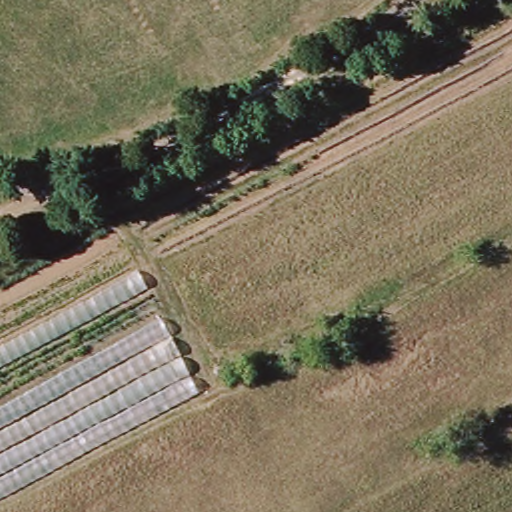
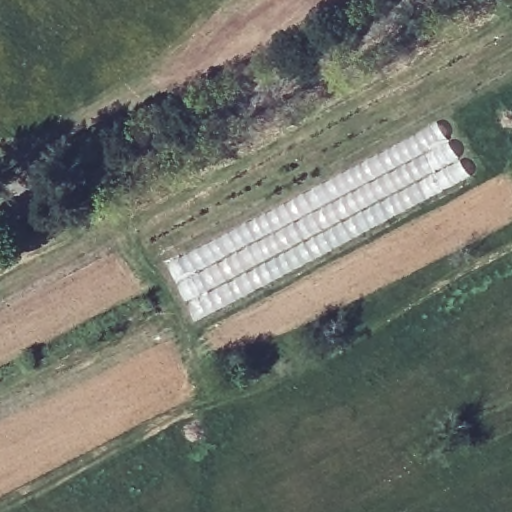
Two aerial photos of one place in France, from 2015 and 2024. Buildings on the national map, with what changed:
new [(361,164),(436,122),(468,177),(300,268),(192,322),(165,262),(361,164)]
demolished [(202,392),(34,482),(0,499),(0,346),(136,272),(202,392)]

